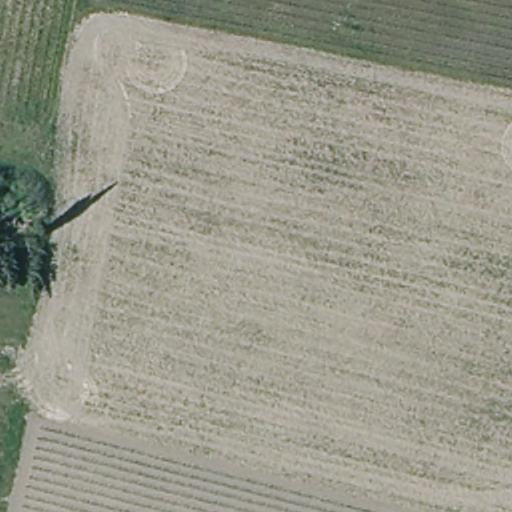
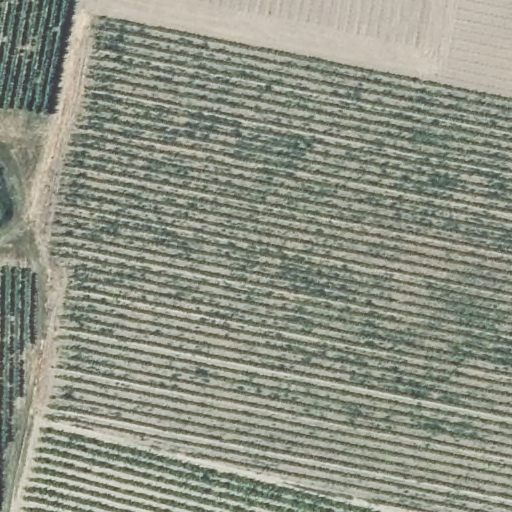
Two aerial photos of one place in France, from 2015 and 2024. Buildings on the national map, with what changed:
[]

